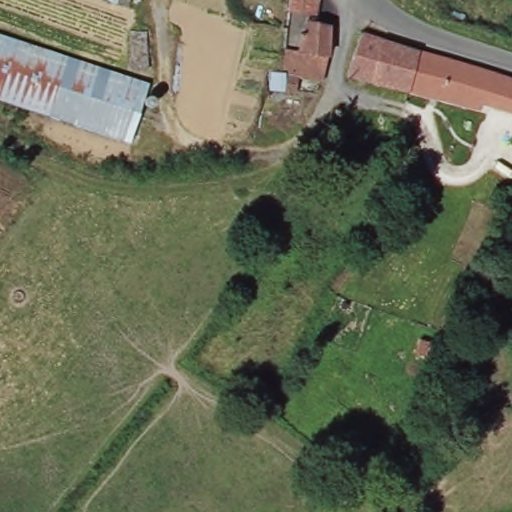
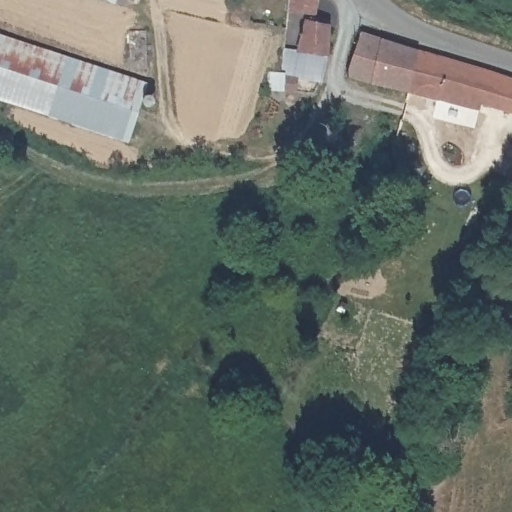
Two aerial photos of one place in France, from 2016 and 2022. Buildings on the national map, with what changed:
unchanged [(108,0),(118,0),(117,3),(108,0)]
unchanged [(321,0),(317,16),(295,11),(290,10),(292,0),(321,0)]
unchanged [(303,48),(309,19),(337,22),(340,34),(338,47),(336,55),(303,48)]
unchanged [(378,82),(352,76),(364,29),(388,37),(378,82)]
unchanged [(130,142),(0,100),(0,36),(150,86),(130,142)]
unchanged [(410,90),(378,82),(388,37),(421,46),(410,90)]
unchanged [(303,83),(300,98),(282,93),(290,46),(303,48),(336,55),(330,88),(303,83)]
unchanged [(512,74),(512,109),(485,101),(480,108),(410,90),(421,46),(512,74)]

